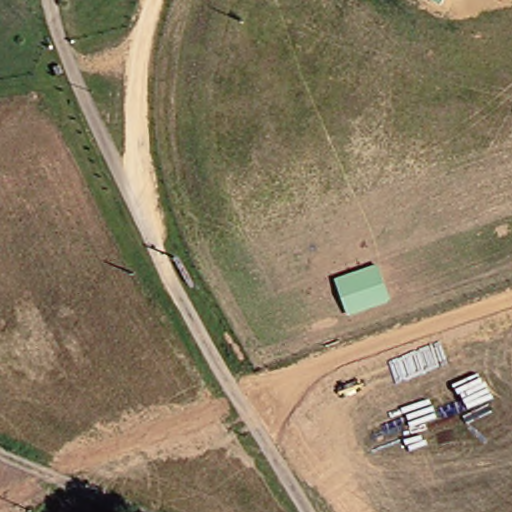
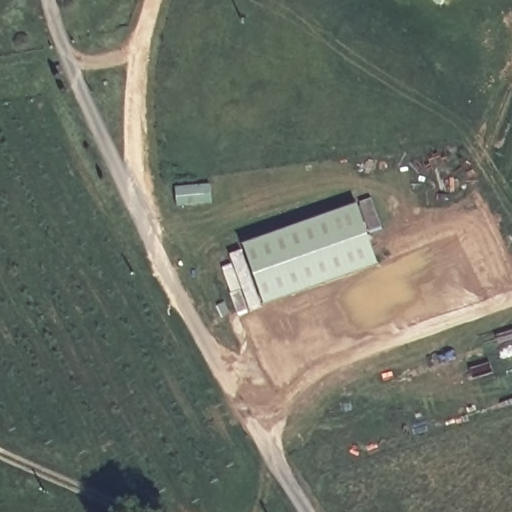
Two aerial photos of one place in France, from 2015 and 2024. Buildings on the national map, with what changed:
unchanged [(445,0),(442,4),(437,0),(445,0)]
new [(385,233),(372,239),(383,264),(267,310),(245,248),(373,198),(385,233)]

